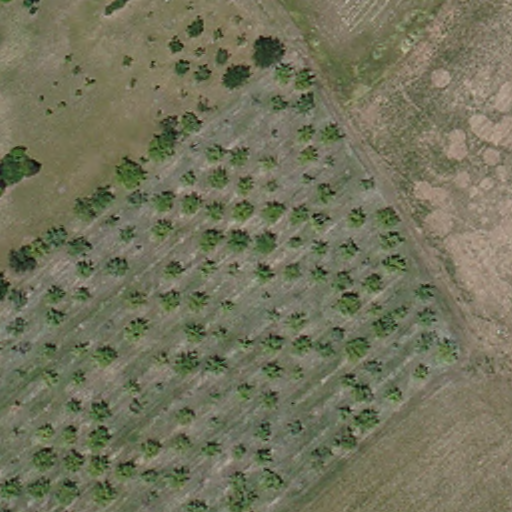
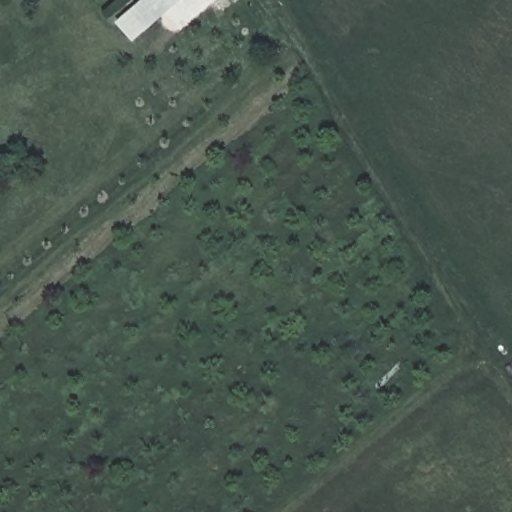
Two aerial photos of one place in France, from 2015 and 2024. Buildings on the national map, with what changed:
new [(179,29),(166,15),(132,43),(115,23),(141,0),(214,0),(179,29)]

